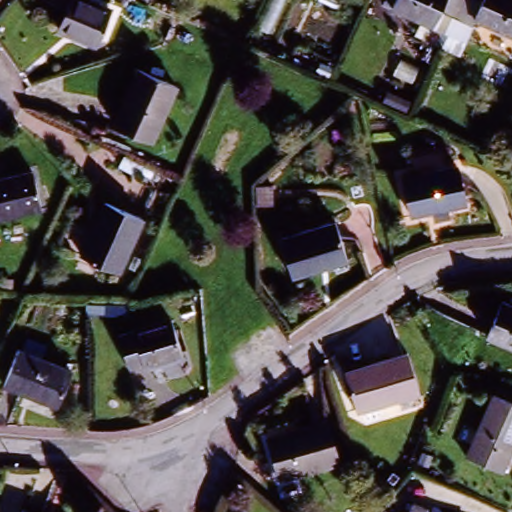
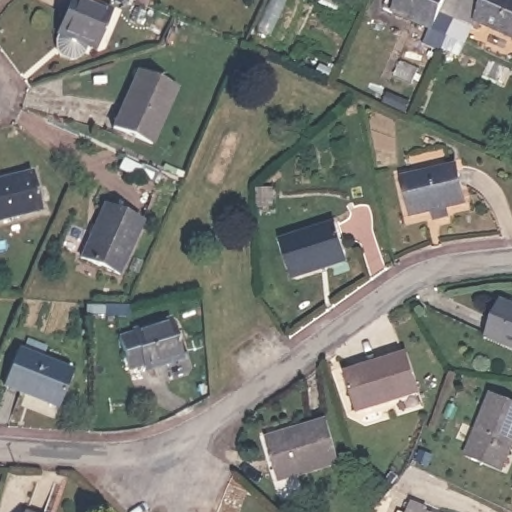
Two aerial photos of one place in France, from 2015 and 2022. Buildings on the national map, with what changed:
unchanged [(97,48),(59,31),(73,0),(82,0),(112,14),(97,48)]
unchanged [(439,52),(428,47),(436,29),(389,7),(392,0),(462,0),(447,34),(439,52)]
unchanged [(480,0),(482,1),(482,0),(512,0),(512,37),(475,21),(465,42),(447,34),(462,0),(480,0)]
unchanged [(142,72),(179,90),(152,145),(115,127),(142,72)]
unchanged [(405,215),(400,176),(459,167),(465,206),(405,215)]
unchanged [(32,170),(42,207),(0,218),(0,178),(32,170)]
unchanged [(84,256),(107,205),(143,221),(120,272),(84,256)]
unchanged [(339,263),(285,278),(274,240),(328,224),(339,263)]
unchanged [(512,354),(481,338),(497,307),(512,314),(512,354)]
unchanged [(168,325),(177,364),(142,372),(137,368),(125,371),(117,337),(168,325)]
unchanged [(19,345),(69,367),(54,401),(4,377),(19,345)]
unchanged [(410,354),(422,392),(360,411),(349,373),(410,354)]
unchanged [(470,457),(500,398),(512,405),(512,459),(504,475),(470,457)]
unchanged [(264,439),(325,423),(335,459),(275,476),(264,439)]
unchanged [(422,509),(420,512),(406,512),(410,504),(422,509)]

